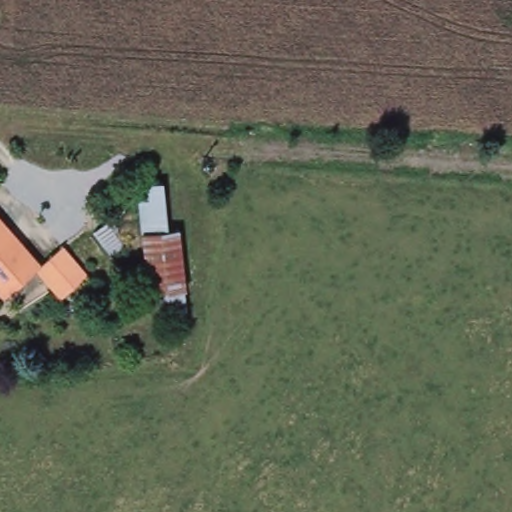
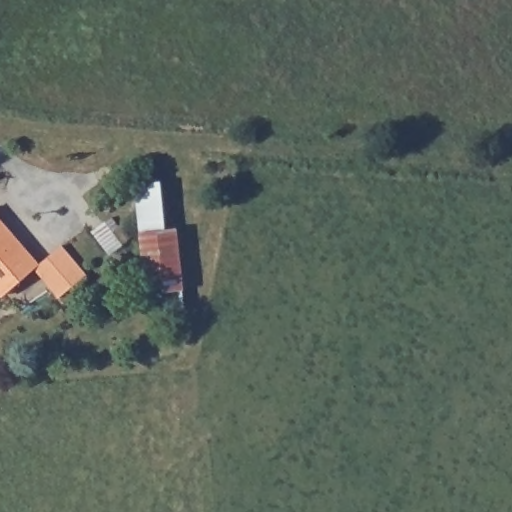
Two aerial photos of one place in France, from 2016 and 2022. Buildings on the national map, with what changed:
unchanged [(137,178),(162,175),(167,223),(142,226),(137,178)]
unchanged [(111,213),(112,213),(128,236),(119,243),(111,248),(94,225),(111,213)]
unchanged [(162,307),(161,286),(150,287),(142,226),(167,223),(178,222),(185,283),(182,284),(185,304),(162,307)]
unchanged [(57,250),(92,291),(79,302),(69,291),(55,303),(31,274),(0,300),(0,230),(34,270),(57,250)]

